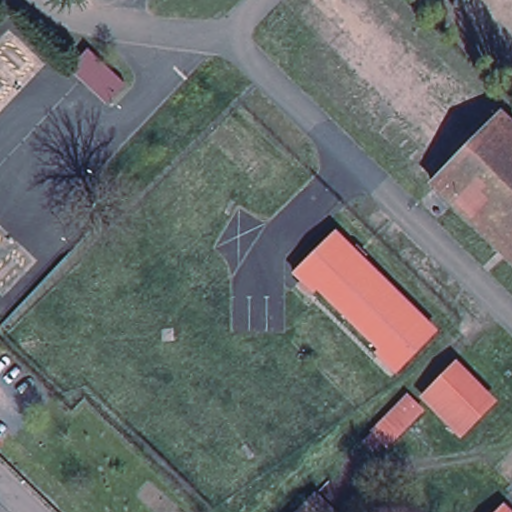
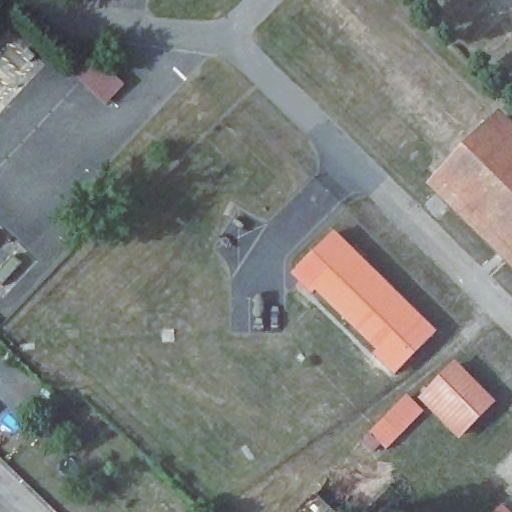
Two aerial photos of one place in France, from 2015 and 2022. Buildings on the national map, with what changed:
unchanged [(125,85),(105,105),(68,69),(87,49),(125,85)]
unchanged [(501,111),(512,122),(512,257),(434,179),(501,111)]
unchanged [(395,374),(377,356),(381,353),(315,286),(311,289),(293,272),(335,232),(435,334),(395,374)]
unchanged [(493,404),(465,431),(459,436),(422,398),(456,365),(493,404)]
unchanged [(366,441),(375,433),(410,397),(425,412),(389,448),(382,441),(373,449),(366,441)]
unchanged [(308,486),(335,512),(283,512),(308,486)]
unchanged [(507,507),(512,512),(502,512),(507,507)]

